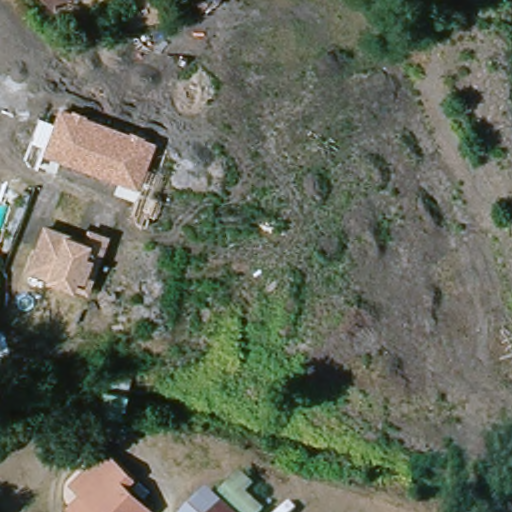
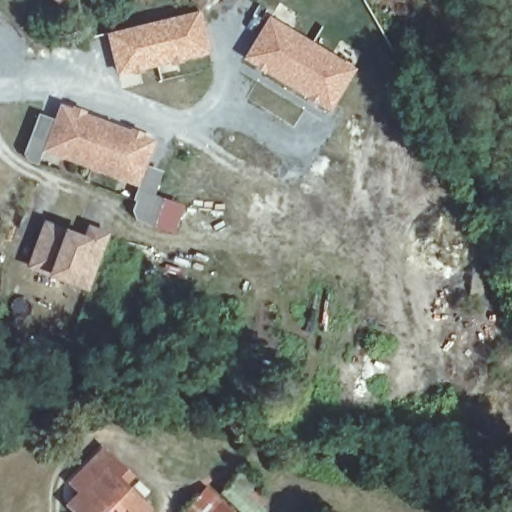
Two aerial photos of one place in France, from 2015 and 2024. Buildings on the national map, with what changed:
new [(105,32),(200,10),(208,52),(116,73),(105,32)]
new [(242,59),(270,16),(355,69),(330,110),(242,59)]
unchanged [(55,120),(59,105),(69,107),(70,104),(88,110),(86,114),(129,129),(130,125),(147,132),(145,135),(157,140),(147,165),(161,170),(154,192),(164,195),(157,216),(148,213),(146,224),(137,222),(132,211),(138,185),(44,154),(35,170),(25,166),(22,155),(38,115),(55,120)]
unchanged [(96,264),(88,287),(50,273),(51,270),(30,262),(45,225),(85,240),(89,229),(107,235),(96,264)]
unchanged [(85,500),(74,490),(94,467),(108,452),(134,476),(119,490),(142,512),(74,512),(80,505),(85,500)]
unchanged [(243,467),(260,480),(250,491),(268,511),(267,512),(229,512),(211,496),(243,467)]
unchanged [(211,496),(229,512),(182,512),(204,490),(211,496)]

